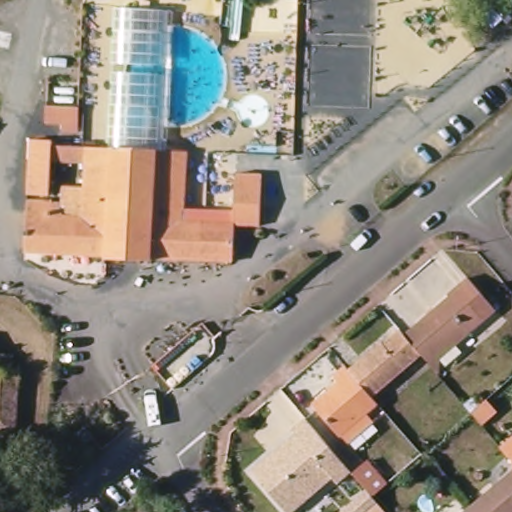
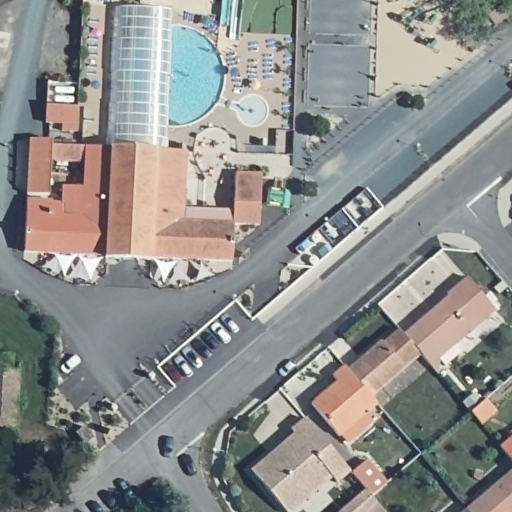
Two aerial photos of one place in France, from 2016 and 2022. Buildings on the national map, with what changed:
unchanged [(78,123),(46,122),(47,105),(79,106),(78,123)]
unchanged [(182,221),(233,224),(236,173),(262,174),(259,225),(234,224),(233,261),(152,257),(152,260),(106,258),(106,255),(25,252),(27,199),(52,200),(52,202),(62,203),(63,186),(84,187),(85,162),(51,160),(50,195),(27,194),(30,139),(52,140),(52,145),(98,147),(98,134),(110,134),(114,135),(113,148),(186,151),(182,221)]
unchanged [(421,359),(404,340),(448,301),(447,299),(467,281),(495,314),(455,349),(461,356),(446,369),(440,363),(439,371),(439,380),(431,371),(421,359)]
unchanged [(372,402),(349,374),(382,346),(383,348),(399,334),(404,340),(421,359),(372,402)]
unchanged [(11,364),(18,364),(18,372),(16,436),(0,436),(0,371),(11,371),(11,364)]
unchanged [(340,441),(312,408),(328,395),(338,386),(333,381),(345,370),(349,374),(372,402),(378,409),(340,441)]
unchanged [(338,478),(297,512),(291,512),(258,473),(277,457),(275,455),(300,434),(297,430),(310,419),(357,474),(344,485),(338,478)]
unchanged [(94,438),(86,445),(77,433),(85,427),(94,438)]
unchanged [(512,441),(512,466),(500,451),(512,441)]
unchanged [(349,510),(371,490),(357,474),(372,460),(392,484),(377,497),(382,503),(390,512),(351,512),(349,510)]
unchanged [(512,474),(512,512),(469,512),(512,474)]

